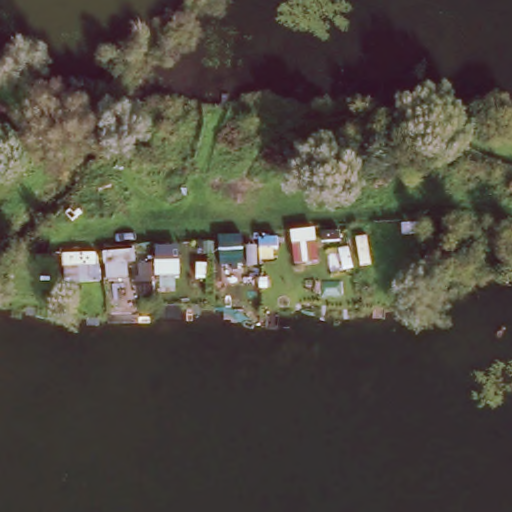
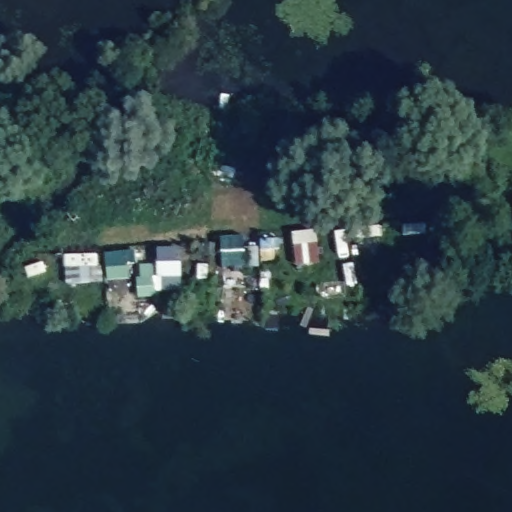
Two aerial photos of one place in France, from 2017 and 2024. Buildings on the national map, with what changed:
unchanged [(293,233),(317,231),(322,265),(297,265),(293,233)]
unchanged [(328,250),(350,246),(355,272),(332,275),(328,250)]
unchanged [(138,264),(155,264),(155,250),(176,250),(176,259),(180,259),(181,277),(156,278),(157,299),(140,298),(138,264)]
unchanged [(97,252),(98,266),(86,267),(90,283),(63,283),(62,267),(55,267),(54,255),(97,252)]
unchanged [(136,252),(137,261),(130,263),(131,282),(107,284),(105,253),(136,252)]

